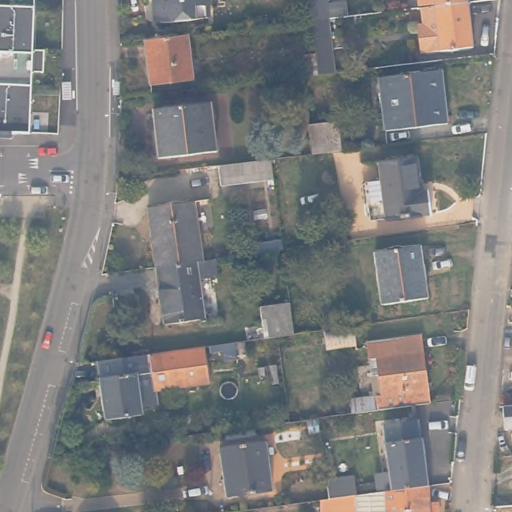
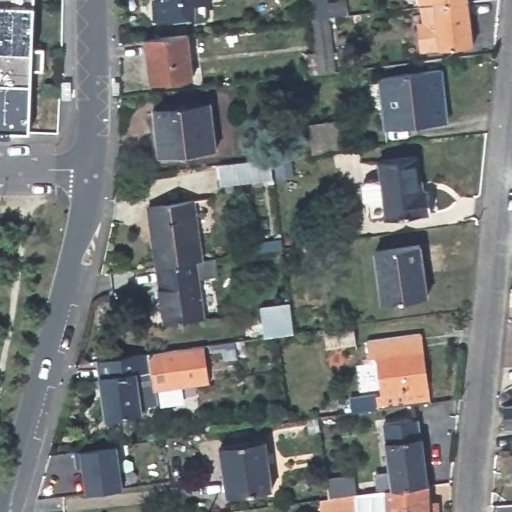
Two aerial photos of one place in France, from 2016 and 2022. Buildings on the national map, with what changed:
unchanged [(49,49),(49,72),(37,71),(34,132),(0,131),(0,0),(39,0),(38,48),(49,49)]
unchanged [(164,17),(158,13),(157,2),(159,0),(211,0),(211,2),(211,15),(199,15),(164,17)]
unchanged [(311,0),(349,0),(351,12),(333,14),(339,77),(319,79),(319,75),(306,77),(304,55),(317,54),(311,0)]
unchanged [(442,4),(427,5),(426,0),(473,0),(474,3),(442,7),(442,4)]
unchanged [(479,46),(438,50),(426,47),(424,30),(431,25),(429,8),(442,7),(474,3),(479,46)]
unchanged [(185,36),(191,82),(150,86),(145,40),(185,36)]
unchanged [(443,69),(449,122),(387,130),(382,77),(443,69)]
unchanged [(209,99),(214,146),(159,152),(154,105),(209,99)]
unchanged [(339,120),(342,151),(314,154),(310,123),(339,120)]
unchanged [(414,157),(419,193),(427,192),(429,215),(386,220),(384,203),(366,206),(364,191),(368,185),(381,183),(378,163),(414,157)]
unchanged [(272,159),(275,180),(223,186),(220,165),(272,159)]
unchanged [(149,204),(195,197),(205,257),(158,264),(149,204)]
unchanged [(421,247),(428,300),(383,305),(376,253),(421,247)]
unchanged [(205,257),(217,256),(219,273),(201,276),(206,316),(165,322),(158,264),(205,257)]
unchanged [(300,336),(270,340),(265,310),(295,306),(300,336)]
unchanged [(357,331),(359,347),(330,351),(328,335),(357,331)]
unchanged [(369,345),(422,338),(432,407),(354,418),(352,404),(377,401),(372,364),(369,345)]
unchanged [(179,352),(215,347),(219,379),(152,391),(154,406),(139,407),(140,417),(101,423),(94,363),(179,352)]
unchanged [(512,401),(512,424),(507,424),(505,401),(512,401)]
unchanged [(394,490),(387,423),(419,420),(422,439),(424,438),(429,486),(394,490)]
new [(124,488),(87,493),(81,449),(118,445),(124,488)]
unchanged [(257,447),(264,496),(229,501),(223,451),(257,447)]
unchanged [(439,512),(337,512),(331,512),(319,512),(318,500),(330,498),(328,479),(354,476),(357,495),(394,490),(429,486),(430,503),(439,503),(439,512)]

